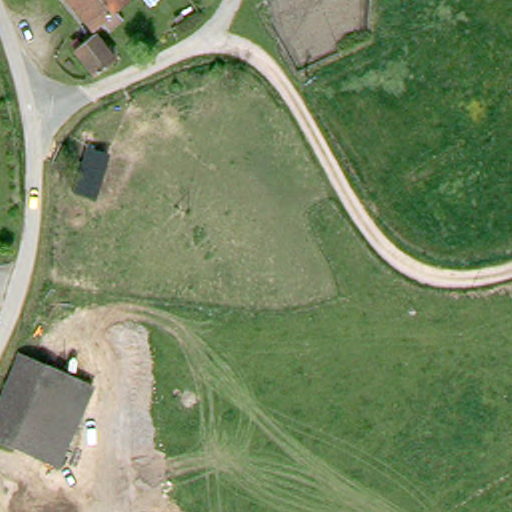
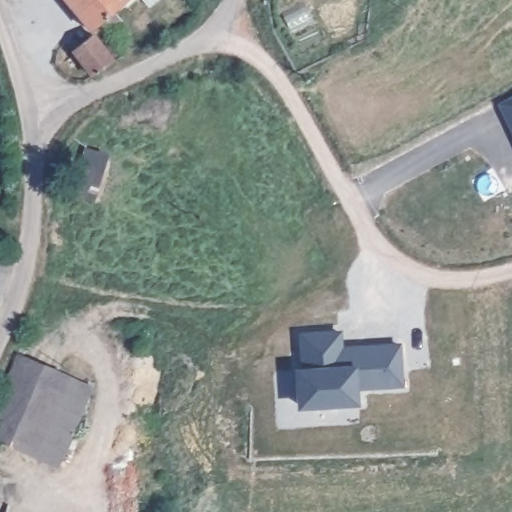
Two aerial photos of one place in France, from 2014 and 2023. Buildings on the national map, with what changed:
unchanged [(114,14),(120,21),(107,32),(101,25),(91,33),(64,0),(130,0),(114,14)]
unchanged [(91,37),(110,62),(94,76),(74,51),(91,37)]
new [(497,103),(512,96),(512,134),(497,103)]
new [(300,368),(299,333),(342,331),(343,345),(400,341),(405,386),(357,389),(359,405),(297,408),(295,368),(300,368)]
unchanged [(90,392),(61,463),(0,439),(0,408),(20,362),(90,392)]

